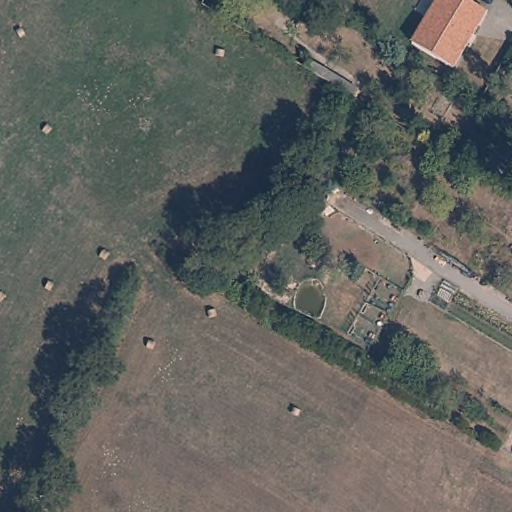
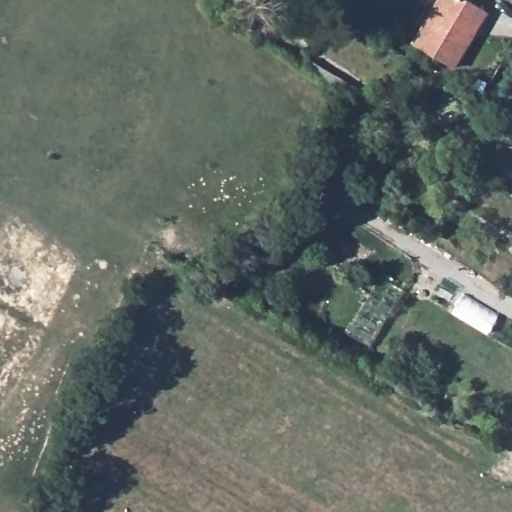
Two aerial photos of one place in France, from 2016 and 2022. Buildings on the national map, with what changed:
unchanged [(490,14),(456,69),(415,45),(442,0),(467,0),(490,14)]
unchanged [(306,67),(310,60),(358,89),(354,97),(336,86),(306,67)]

